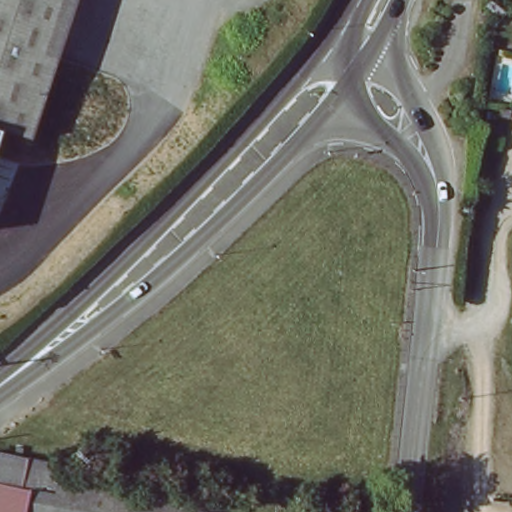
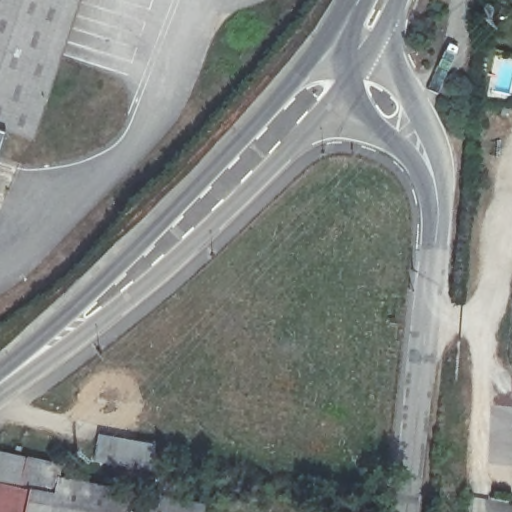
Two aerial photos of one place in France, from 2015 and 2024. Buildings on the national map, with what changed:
unchanged [(71,0),(53,53),(61,55),(33,140),(0,130),(0,0),(71,0)]
new [(153,444),(149,470),(93,460),(98,435),(153,444)]
unchanged [(25,446),(59,452),(53,476),(204,503),(202,512),(0,512),(0,442),(25,446)]

